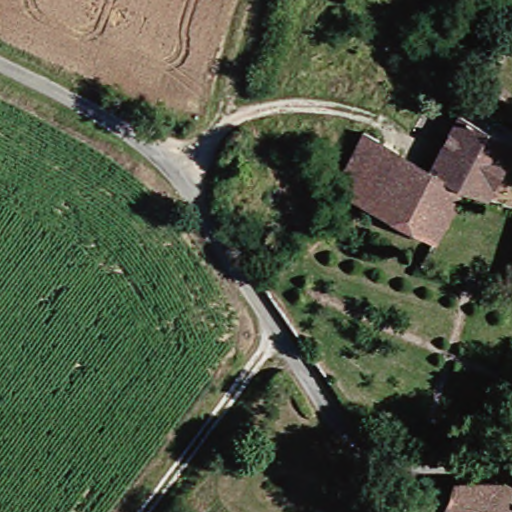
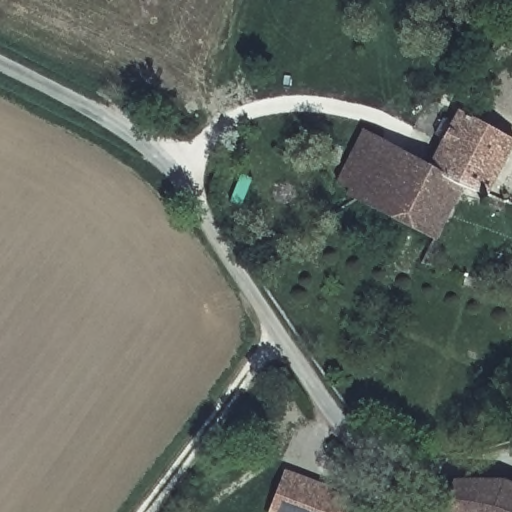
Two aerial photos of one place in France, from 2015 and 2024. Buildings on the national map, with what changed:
unchanged [(437,167),(466,111),(512,136),(512,158),(495,197),(493,201),(472,190),(440,242),(408,222),(437,167)]
unchanged [(338,176),(366,127),(386,139),(356,188),(338,176)]
unchanged [(353,194),(356,188),(386,139),(437,167),(408,222),(362,199),(353,194)]
new [(347,493),(343,504),(347,505),(344,512),(268,512),(285,469),(347,493)]
unchanged [(454,512),(464,482),(512,478),(512,512),(454,512)]

